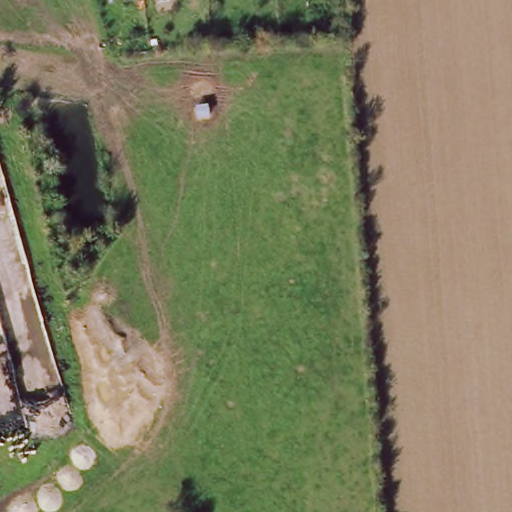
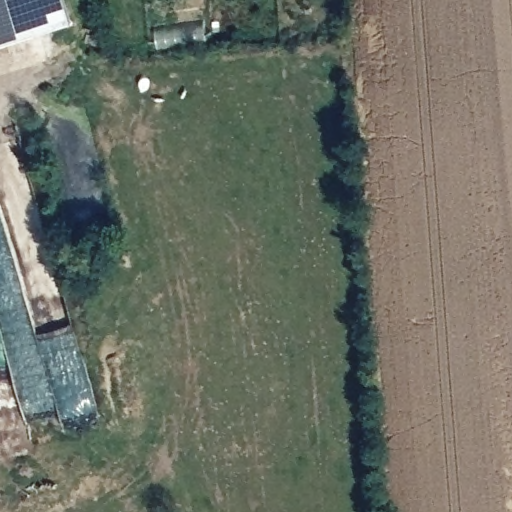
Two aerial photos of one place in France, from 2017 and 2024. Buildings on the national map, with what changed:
new [(0,43),(0,0),(67,0),(73,21),(0,43)]

